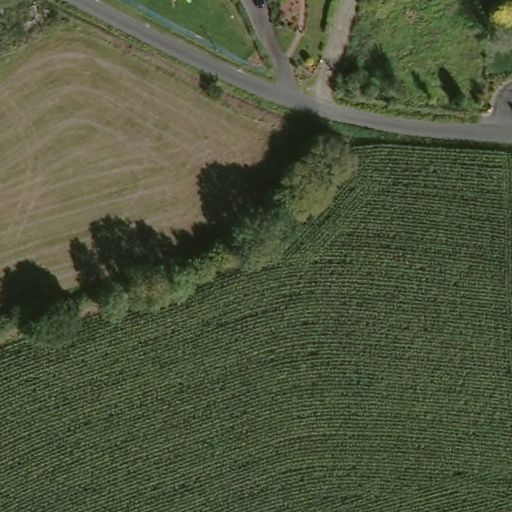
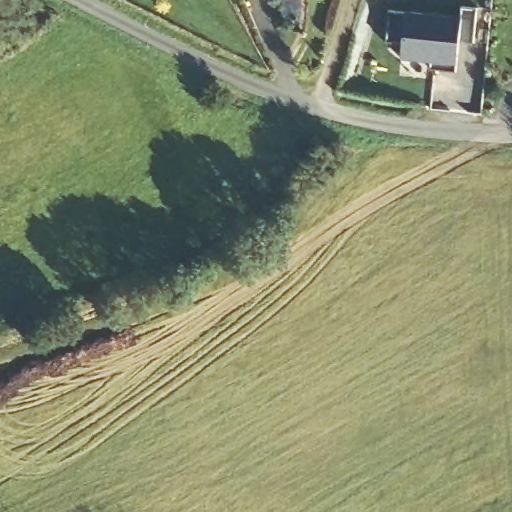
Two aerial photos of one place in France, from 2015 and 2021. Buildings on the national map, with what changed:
new [(389,11),(460,17),(461,8),(476,9),(475,43),(459,40),(455,72),(430,70),(431,63),(400,60),(401,42),(386,40),(389,11)]

